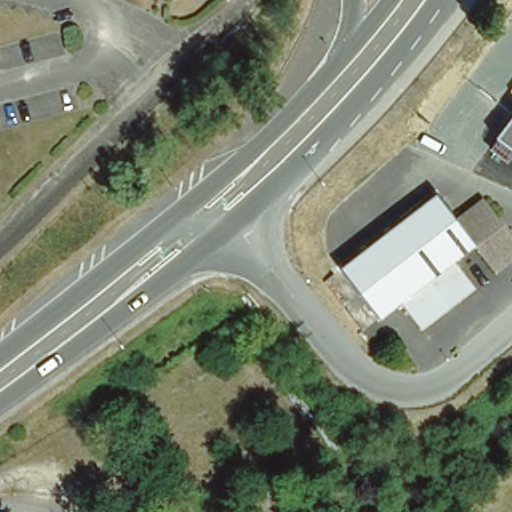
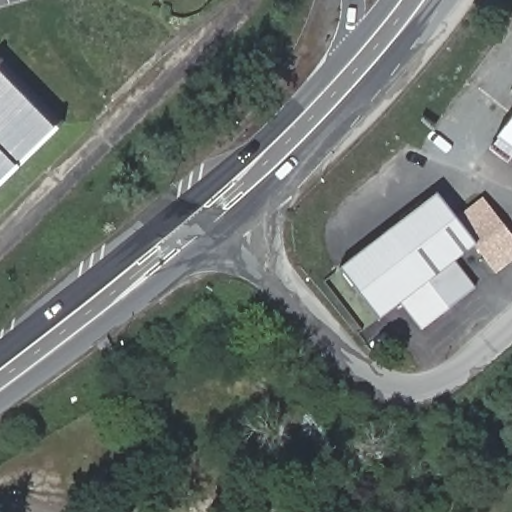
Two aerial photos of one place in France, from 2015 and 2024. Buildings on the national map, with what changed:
new [(0,186),(0,74),(53,128),(55,127),(58,130),(18,168),(0,186)]
unchanged [(503,160),(491,150),(491,144),(497,137),(495,135),(512,113),(512,153),(509,158),(503,160)]
unchanged [(436,197),(455,220),(475,246),(453,263),(472,290),(421,330),(399,302),(378,319),(341,269),(436,197)]
unchanged [(512,244),(512,258),(495,272),(475,246),(455,220),(478,201),(512,244)]

